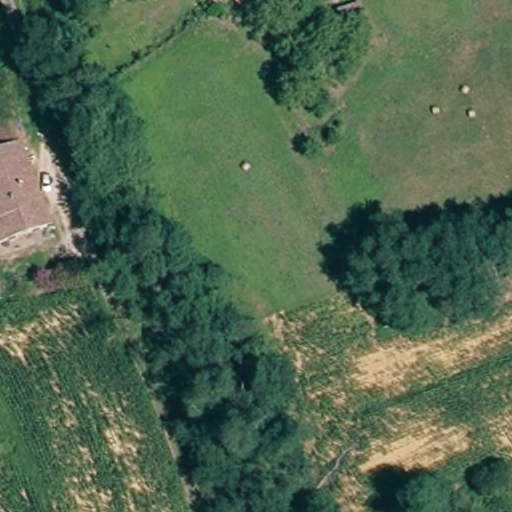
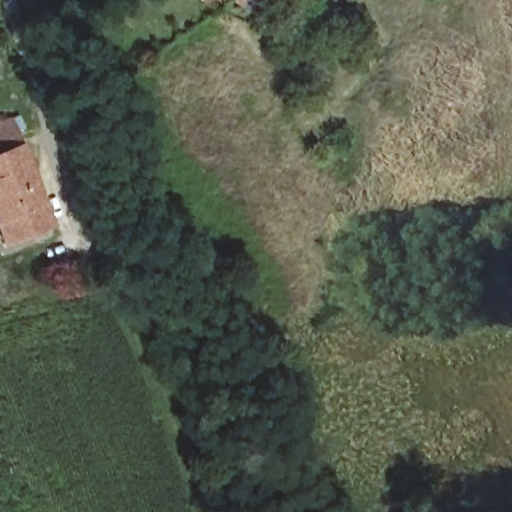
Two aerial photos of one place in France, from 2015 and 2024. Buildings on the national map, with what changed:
unchanged [(193,0),(206,0),(199,6),(193,0)]
unchanged [(228,0),(259,0),(243,15),(228,0)]
unchanged [(353,22),(323,22),(323,7),(353,6),(353,22)]
unchanged [(46,223),(3,241),(0,234),(0,128),(46,223)]

